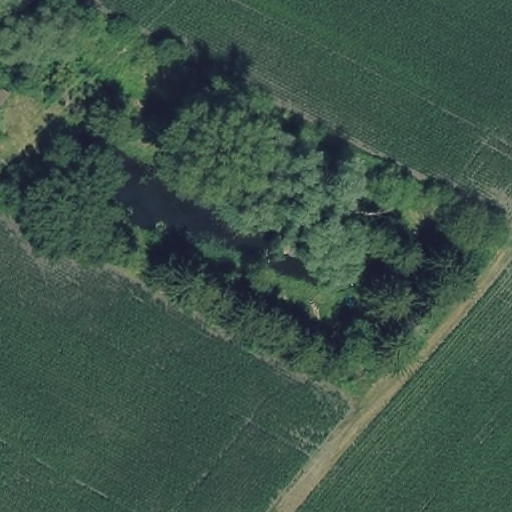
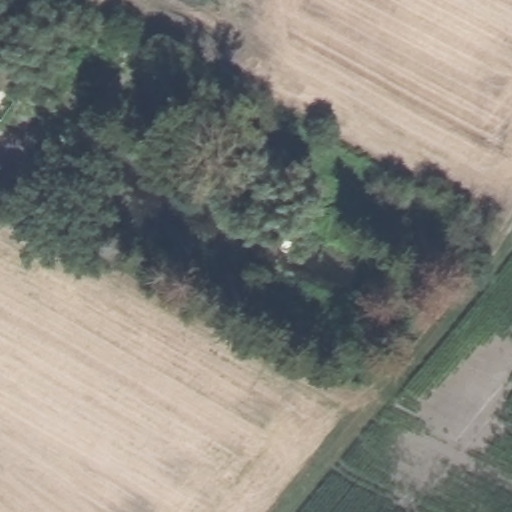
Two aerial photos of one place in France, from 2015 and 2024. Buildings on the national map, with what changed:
unchanged [(0,96),(0,87),(4,90),(0,96)]

